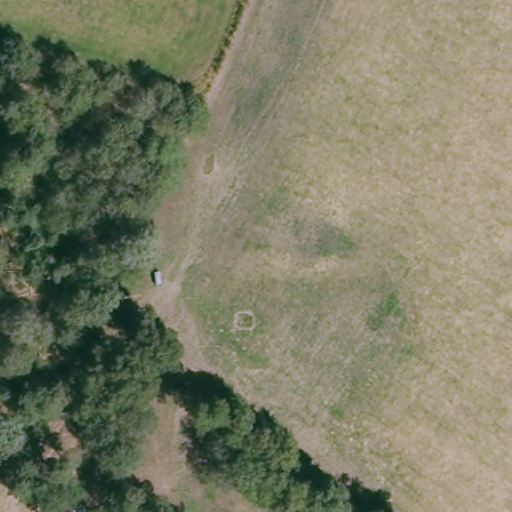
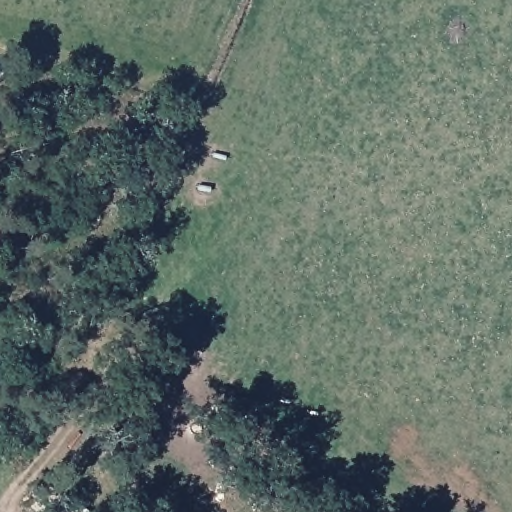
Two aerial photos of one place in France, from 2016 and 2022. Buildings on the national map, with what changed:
unchanged [(105,508),(102,512),(82,512),(72,504),(85,490),(105,508)]

